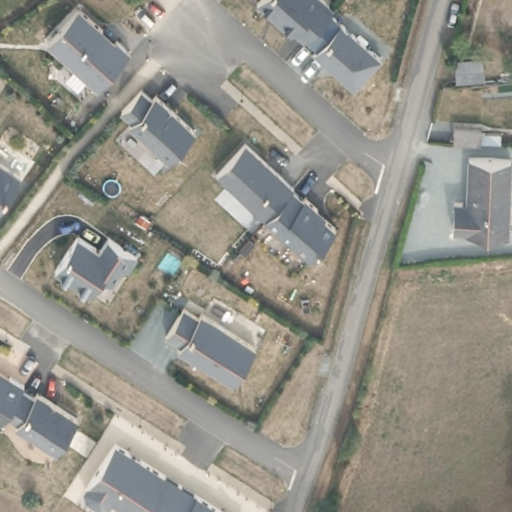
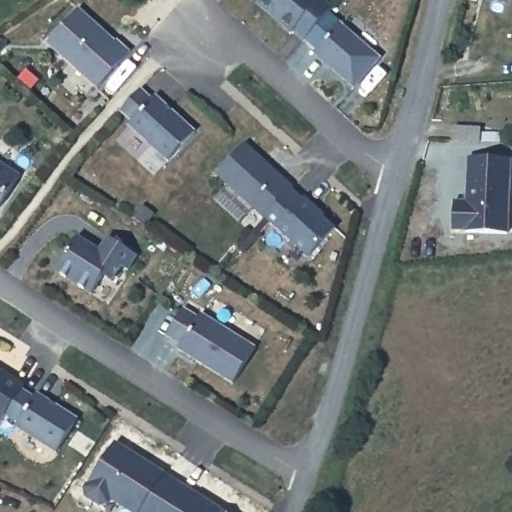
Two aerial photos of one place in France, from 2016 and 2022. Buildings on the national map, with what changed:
unchanged [(254,3),(257,0),(320,0),(330,9),(323,18),(301,42),(290,32),(288,34),(274,22),(267,15),(254,3)]
unchanged [(76,11),(99,33),(97,36),(109,48),(113,44),(127,56),(93,92),(44,46),(76,11)]
unchanged [(342,24),(382,60),(355,90),(315,54),(342,24)]
unchanged [(489,51),(490,71),(450,73),(449,54),(489,51)]
unchanged [(123,107),(142,88),(153,98),(156,94),(195,131),(168,160),(129,124),(132,120),(121,110),(123,107)]
unchanged [(451,126),(476,127),(476,141),(450,142),(451,126)]
unchanged [(216,175),(246,142),(293,188),(266,217),(216,175)]
unchanged [(450,212),(451,202),(465,201),(465,157),(506,158),(507,215),(450,212)]
unchanged [(0,209),(0,162),(21,176),(0,209)]
unchanged [(305,197),(318,209),(325,215),(324,217),(336,229),(309,257),(266,217),(293,188),(304,199),(305,197)]
unchanged [(55,272),(77,238),(100,253),(109,240),(137,258),(127,273),(122,269),(112,283),(103,277),(90,296),(55,272)]
unchanged [(183,307),(198,317),(200,313),(254,348),(231,384),(177,348),(179,344),(165,334),(183,307)]
unchanged [(8,377),(22,387),(20,391),(17,395),(3,416),(1,420),(0,421),(0,375),(7,380),(8,377)]
unchanged [(32,399),(35,395),(76,422),(54,455),(13,428),(16,424),(3,416),(17,395),(20,391),(32,399)]
unchanged [(226,512),(128,512),(112,502),(110,504),(101,507),(88,501),(84,494),(85,486),(90,482),(112,444),(226,512)]

